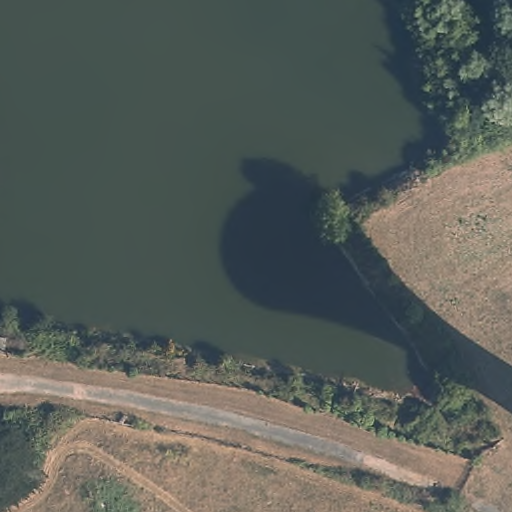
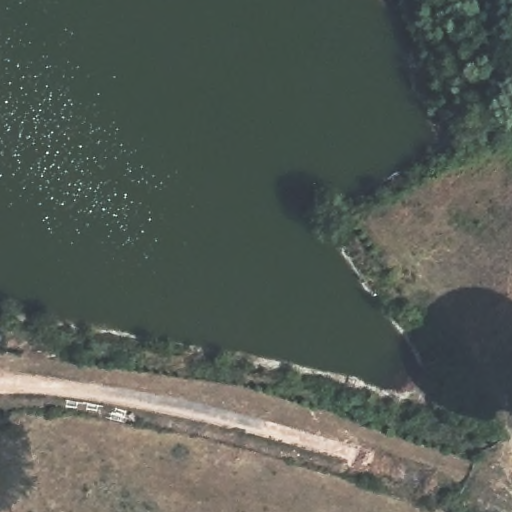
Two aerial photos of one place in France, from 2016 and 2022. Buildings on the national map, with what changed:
unchanged [(3,352),(0,352),(0,337),(4,337),(3,352)]

